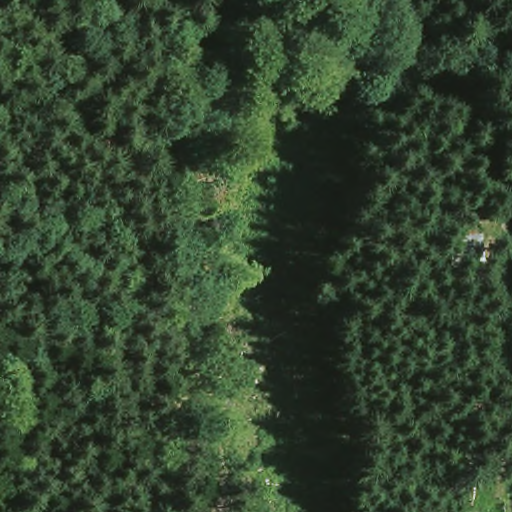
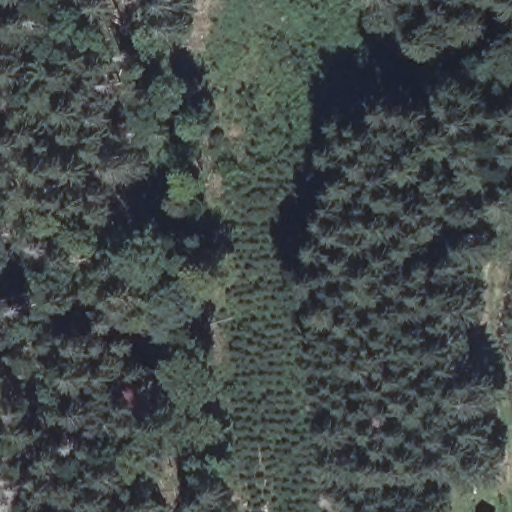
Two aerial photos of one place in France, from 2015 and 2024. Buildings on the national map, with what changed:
[]

